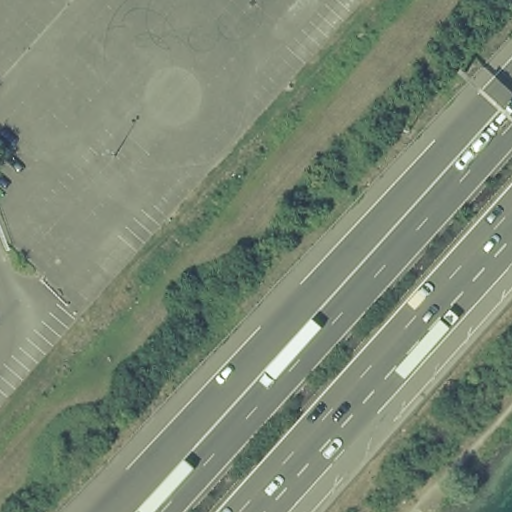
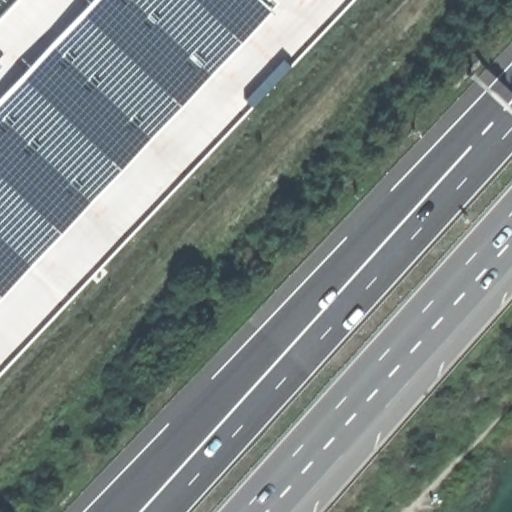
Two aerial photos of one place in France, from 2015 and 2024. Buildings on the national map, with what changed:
new [(16,0),(327,0),(0,353),(0,16),(16,0)]

